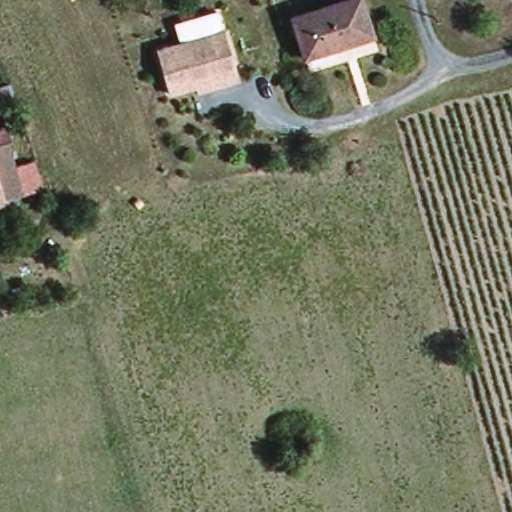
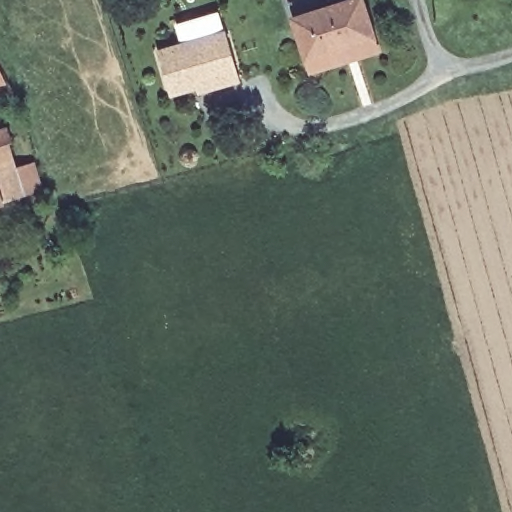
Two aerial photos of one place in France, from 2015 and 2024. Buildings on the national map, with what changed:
unchanged [(304,60),(292,20),(356,0),(360,0),(371,40),(304,60)]
unchanged [(195,87),(168,95),(156,51),(225,32),(238,82),(222,86),(196,93),(195,87)]
unchanged [(25,139),(21,141),(36,193),(0,203),(0,131),(20,125),(25,139)]

